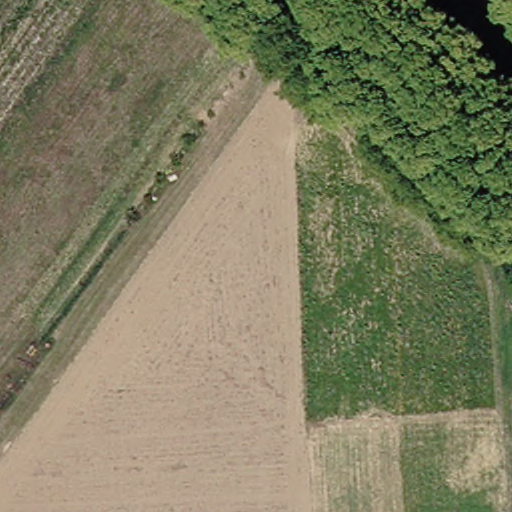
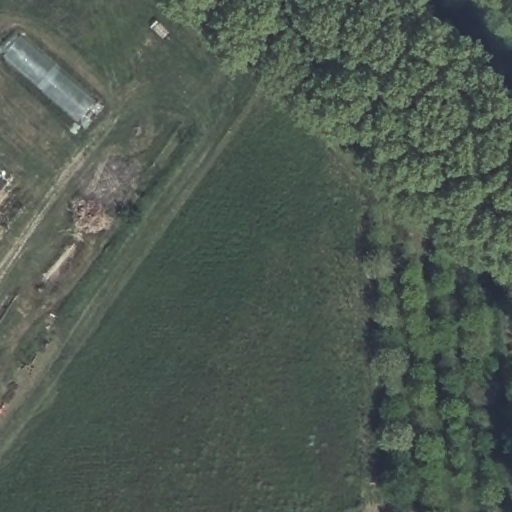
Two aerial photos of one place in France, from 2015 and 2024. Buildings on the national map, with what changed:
new [(77,122),(1,55),(22,31),(96,101),(77,122)]

